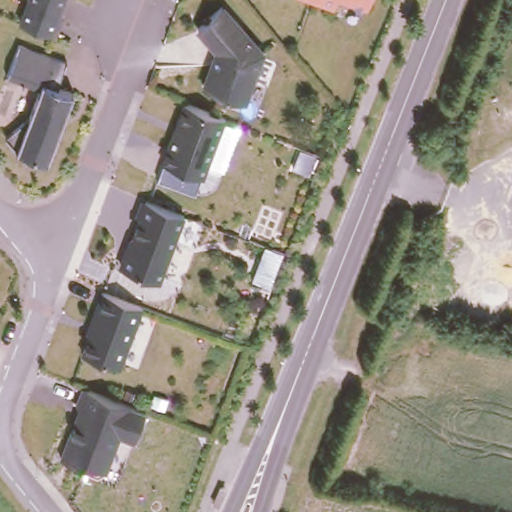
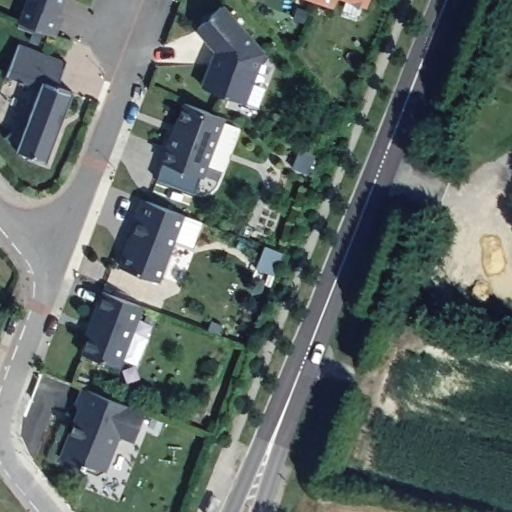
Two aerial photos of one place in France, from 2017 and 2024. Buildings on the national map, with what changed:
unchanged [(22,0),(67,0),(54,37),(14,22),(22,0)]
unchanged [(332,8),(308,0),(334,0),(332,8)]
unchanged [(365,6),(347,0),(367,0),(365,6)]
unchanged [(212,55),(189,28),(223,5),(264,59),(256,84),(251,81),(242,104),(197,87),(212,55)]
unchanged [(27,115),(40,87),(9,75),(19,44),(66,61),(57,87),(71,94),(47,160),(17,147),(7,136),(27,115)]
unchanged [(182,106),(224,120),(202,177),(157,166),(182,106)]
unchanged [(117,269),(142,203),(182,219),(158,281),(117,269)]
unchanged [(100,295),(140,310),(120,368),(77,354),(100,295)]
unchanged [(146,410),(134,443),(117,437),(104,472),(57,456),(76,410),(74,403),(80,387),(146,410)]

